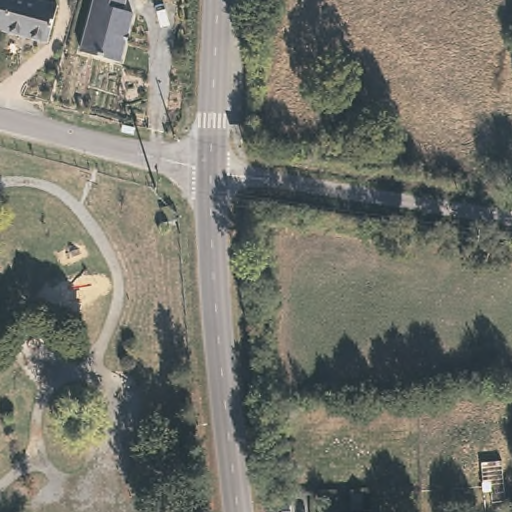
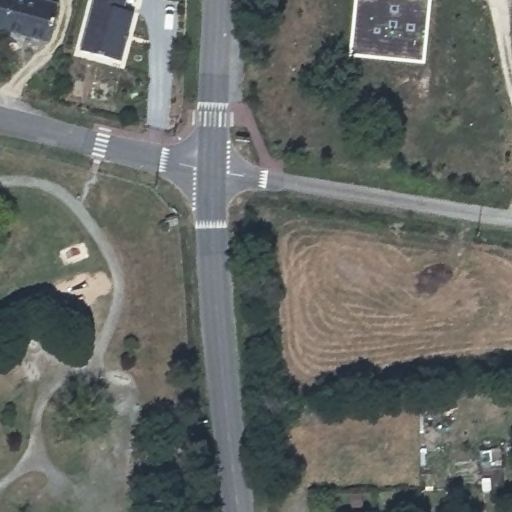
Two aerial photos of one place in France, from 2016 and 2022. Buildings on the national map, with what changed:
unchanged [(41,45),(0,33),(0,0),(24,0),(53,9),(41,45)]
unchanged [(121,0),(119,5),(130,8),(119,57),(79,49),(90,0),(121,0)]
new [(349,56),(354,0),(430,0),(424,64),(349,56)]

